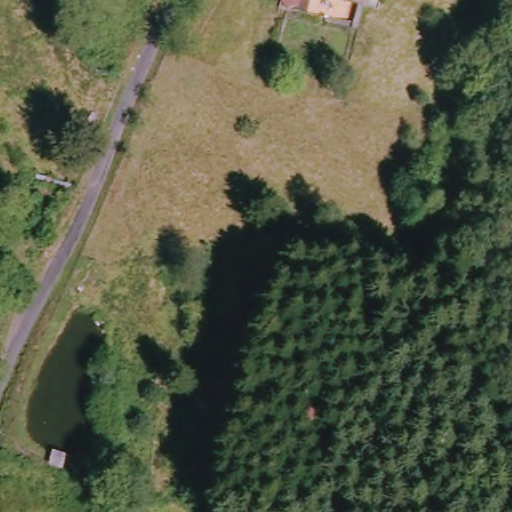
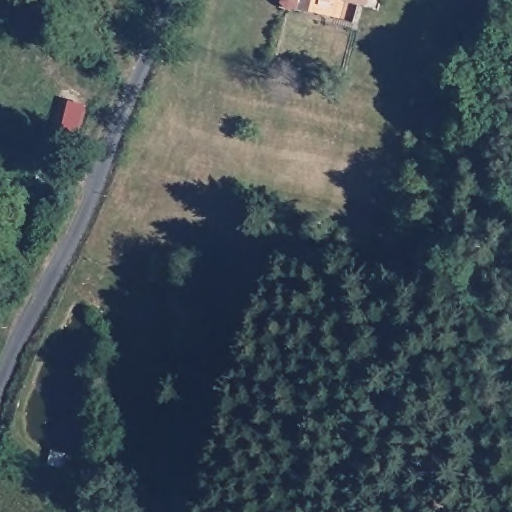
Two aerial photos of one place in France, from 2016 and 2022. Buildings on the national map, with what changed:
unchanged [(378,16),(353,11),(353,3),(338,1),(335,0),(382,0),(378,16)]

